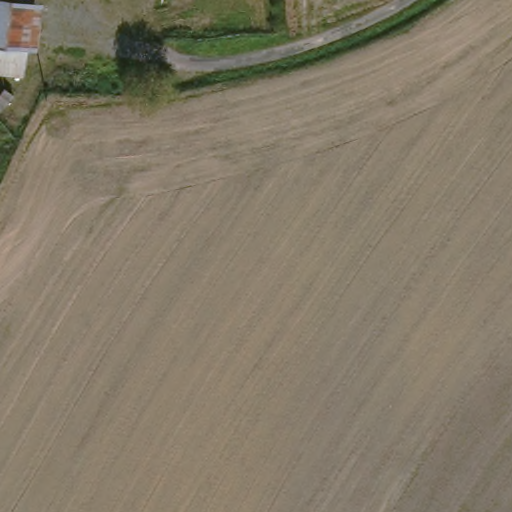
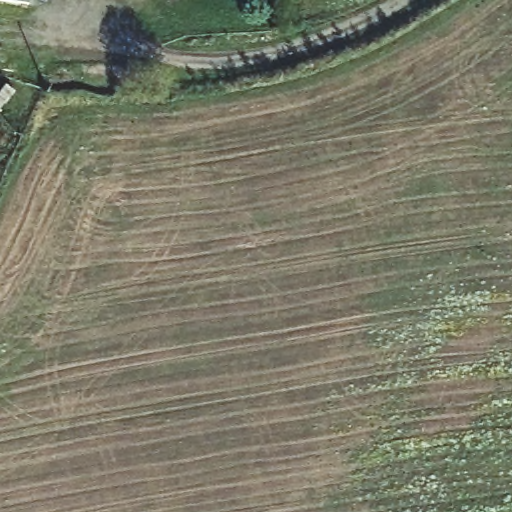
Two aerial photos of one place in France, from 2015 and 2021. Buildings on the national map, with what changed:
unchanged [(9,100),(0,111),(0,93),(9,100)]

